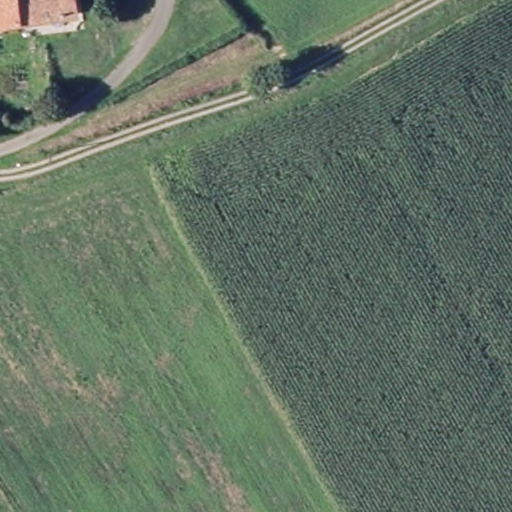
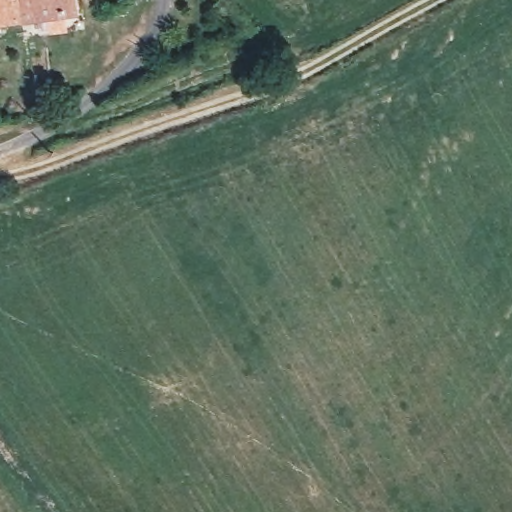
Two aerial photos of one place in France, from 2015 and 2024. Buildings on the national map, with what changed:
unchanged [(46,18),(0,26),(0,0),(75,0),(77,13),(46,18)]

